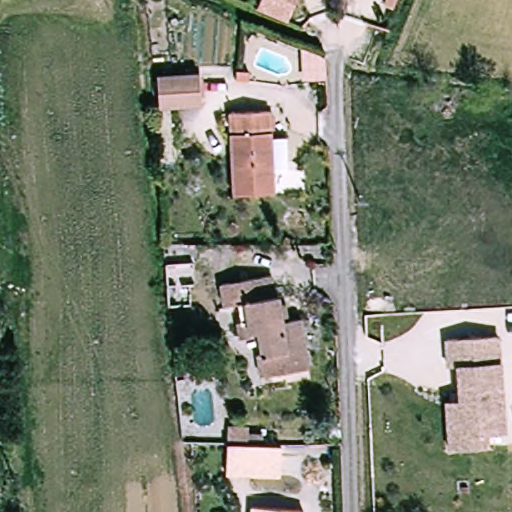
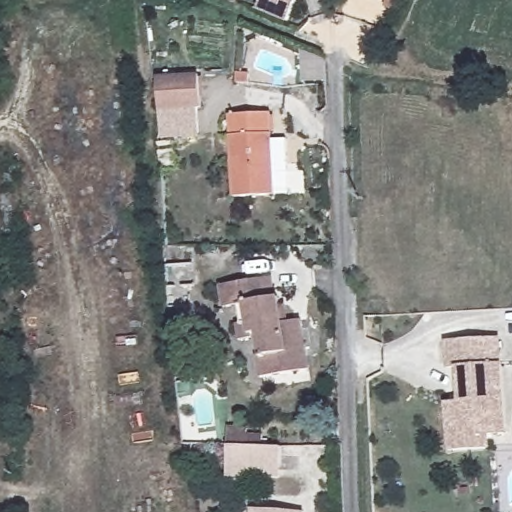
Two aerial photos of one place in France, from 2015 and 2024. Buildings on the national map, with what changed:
unchanged [(256,10),(261,0),(297,0),(288,22),(256,10)]
unchanged [(326,60),(326,81),(304,81),(302,49),(326,60)]
unchanged [(201,75),(203,107),(161,110),(158,78),(201,75)]
unchanged [(285,195),(280,195),(238,198),(233,117),(274,115),(275,136),(281,136),(285,195)]
unchanged [(192,257),(193,270),(166,270),(166,257),(192,257)]
unchanged [(313,366),(264,375),(261,351),(266,350),(263,328),(256,328),(256,335),(241,337),(239,321),(245,320),(241,302),(228,305),(224,282),(277,274),(281,295),(284,294),(285,303),(291,302),(293,319),(304,317),(313,366)]
unchanged [(2,348),(0,348),(0,311),(5,312),(2,348)]
unchanged [(466,401),(463,367),(454,367),(452,340),(503,337),(510,433),(493,435),(468,436),(466,401)]
unchanged [(468,436),(493,435),(494,448),(456,450),(454,434),(452,402),(453,402),(466,401),(468,436)]
unchanged [(234,481),(234,451),(235,433),(255,434),(255,441),(270,441),(269,451),(287,451),(287,482),(234,481)]
unchanged [(255,508),(308,511),(308,512),(255,512),(255,508)]

